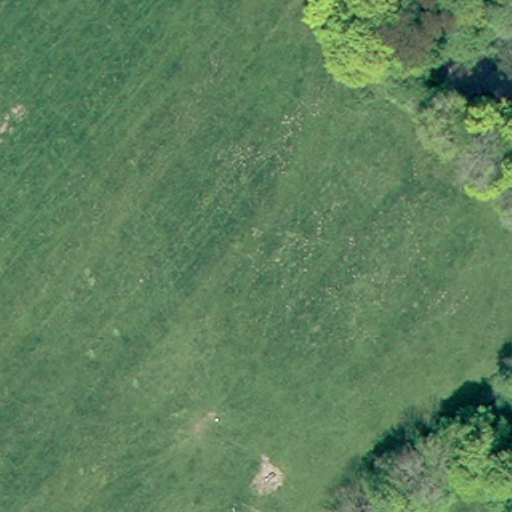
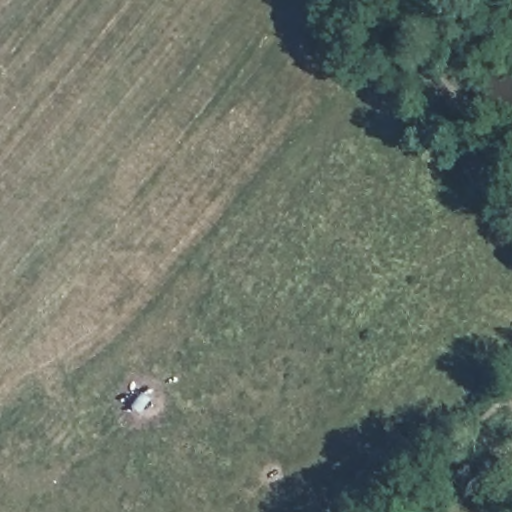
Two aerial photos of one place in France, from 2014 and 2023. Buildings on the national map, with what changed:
[]

